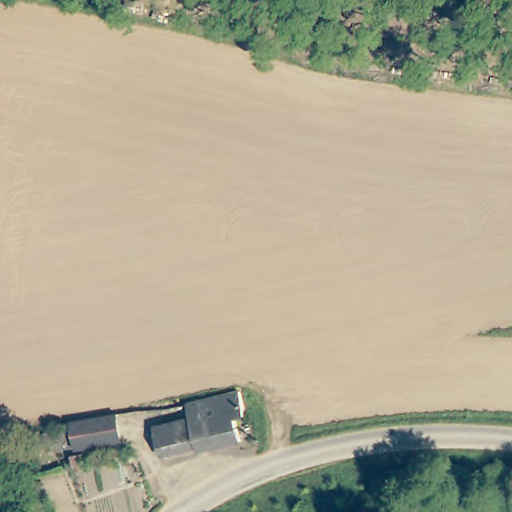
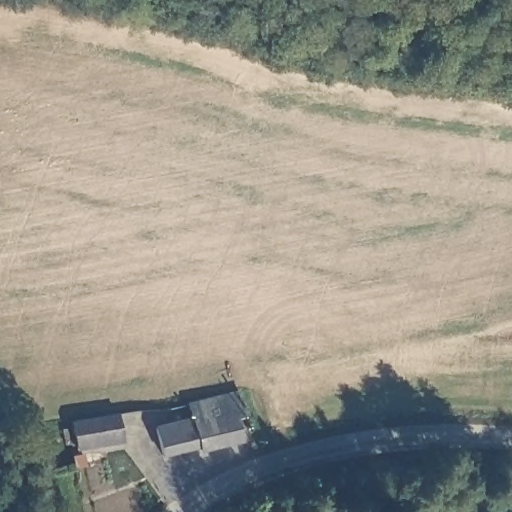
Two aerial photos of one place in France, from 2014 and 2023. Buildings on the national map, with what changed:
unchanged [(248,410),(235,413),(241,436),(200,447),(199,443),(163,451),(156,422),(190,413),(186,399),(243,386),(248,410)]
unchanged [(131,437),(77,448),(71,422),(126,410),(131,437)]

